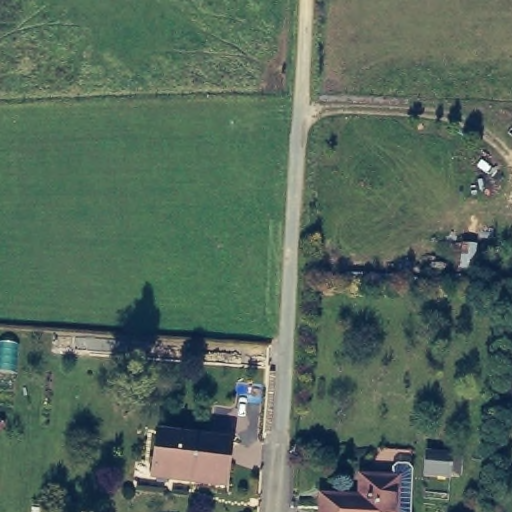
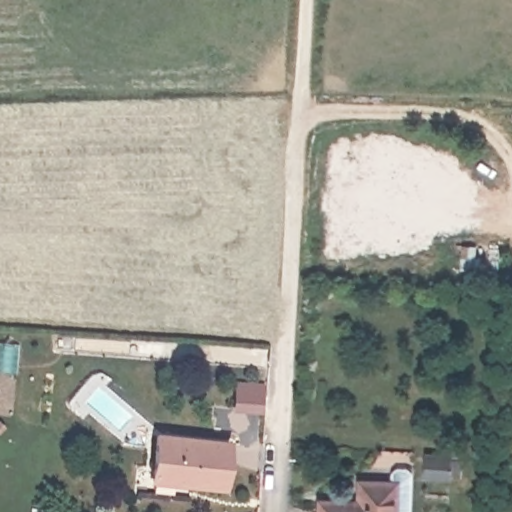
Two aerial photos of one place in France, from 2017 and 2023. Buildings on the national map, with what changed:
unchanged [(228,492),(149,485),(152,428),(232,437),(228,492)]
unchanged [(354,493),(357,472),(402,476),(401,512),(315,512),(315,491),(354,493)]

